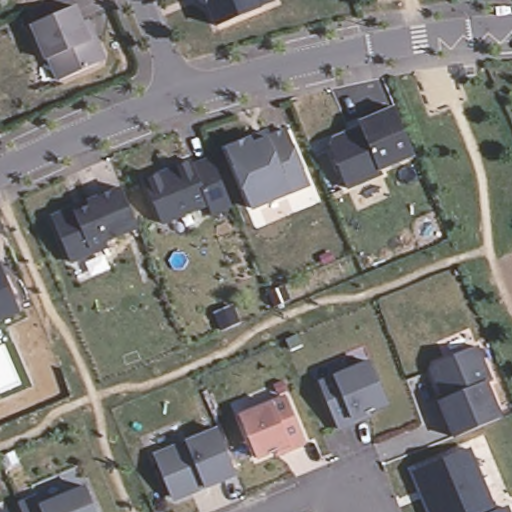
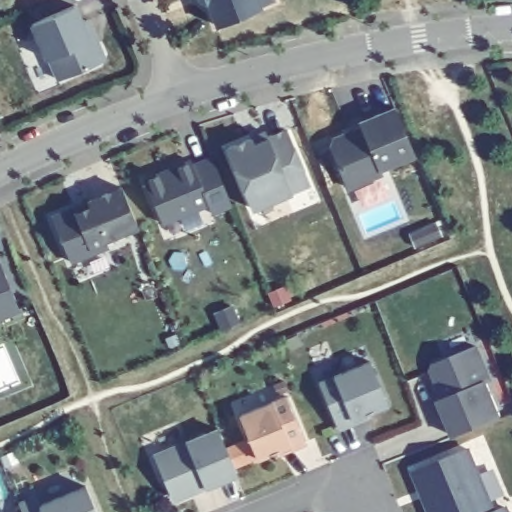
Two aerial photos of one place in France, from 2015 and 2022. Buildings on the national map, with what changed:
unchanged [(216,26),(206,3),(210,1),(210,0),(273,0),(274,2),(260,8),(216,26)]
unchanged [(75,6),(89,41),(97,44),(102,56),(99,64),(59,81),(50,59),(47,60),(32,25),(75,6)]
unchanged [(395,108),(415,154),(379,169),(381,174),(347,188),(330,146),(332,140),(350,132),(351,135),(362,130),(359,123),(395,108)]
unchanged [(265,133),(267,138),(286,131),(309,185),(251,209),(226,149),(251,139),(265,133)]
unchanged [(161,169),(162,172),(175,167),(173,164),(191,156),(192,161),(211,154),(231,201),(211,209),(207,200),(161,219),(143,176),(161,169)]
unchanged [(56,216),(68,211),(75,214),(90,207),(88,203),(121,189),(137,228),(105,241),(107,247),(70,263),(53,222),(56,216)]
unchanged [(0,320),(0,265),(20,312),(0,320)]
unchanged [(476,346),(491,380),(486,382),(501,419),(455,438),(448,421),(440,401),(449,397),(443,383),(436,380),(432,370),(435,364),(476,346)]
unchanged [(370,362),(387,404),(367,412),(352,418),(354,422),(338,429),(319,383),(370,362)]
unchanged [(286,396),(305,443),(290,449),(288,445),(257,458),(240,415),(286,396)]
unchanged [(236,475),(205,488),(202,484),(193,488),(191,494),(176,500),(170,497),(153,457),(217,430),(236,475)]
unchanged [(426,495),(430,493),(427,484),(425,485),(421,484),(415,466),(467,444),(493,507),(505,503),(508,512),(433,512),(426,495)]
unchanged [(46,497),(50,506),(95,487),(106,512),(31,512),(28,504),(46,497)]
unchanged [(2,512),(0,512),(0,510),(2,512)]

